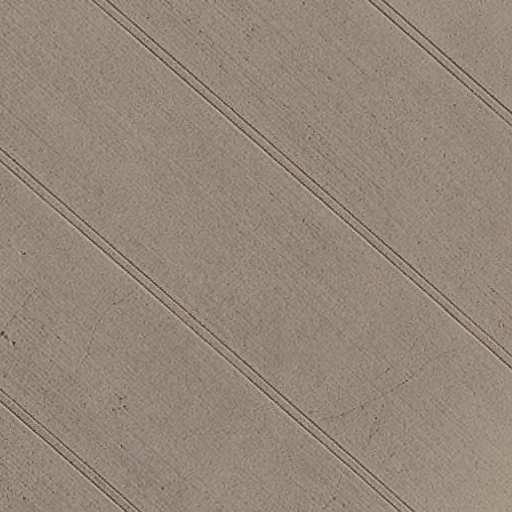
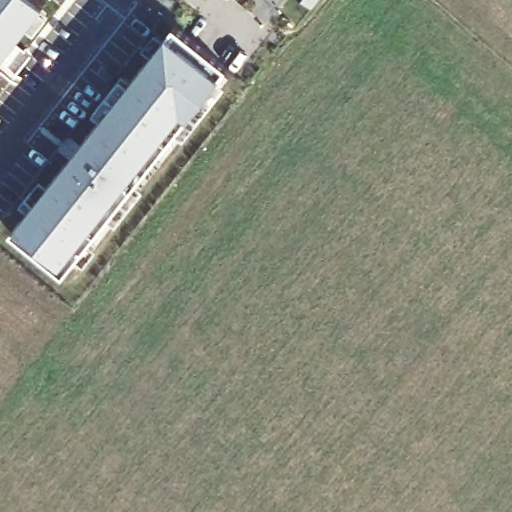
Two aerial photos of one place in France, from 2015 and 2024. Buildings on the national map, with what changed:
new [(46,1),(0,60),(0,0),(44,0),(46,1)]
new [(322,9),(310,0),(328,0),(322,9)]
new [(229,65),(222,74),(190,115),(65,273),(11,230),(15,225),(168,32),(175,24),(229,65)]
new [(2,70),(0,71),(0,68),(2,70)]

